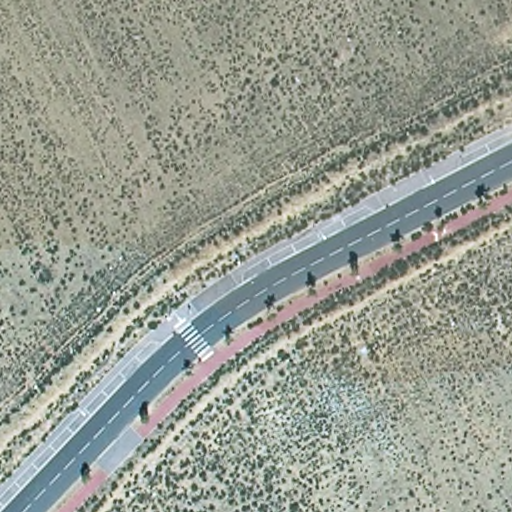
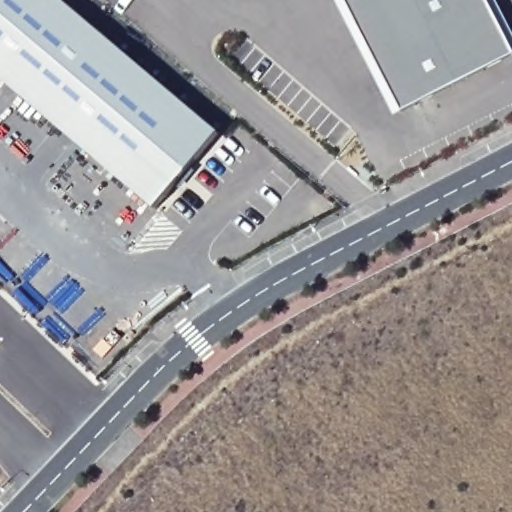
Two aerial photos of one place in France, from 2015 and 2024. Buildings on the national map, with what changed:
new [(0,80),(0,3),(2,0),(60,0),(217,133),(154,210),(0,80)]
new [(345,0),(487,0),(512,49),(512,55),(401,112),(345,0)]

